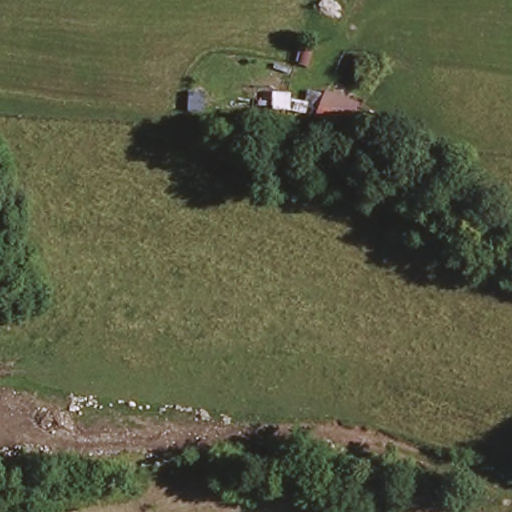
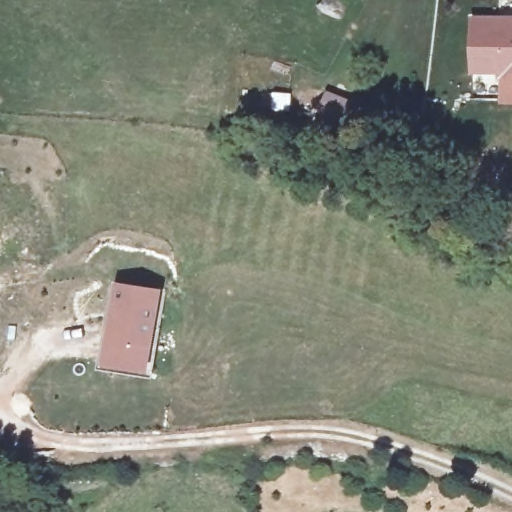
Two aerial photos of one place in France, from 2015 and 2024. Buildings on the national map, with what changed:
new [(512,17),(512,78),(495,78),(495,74),(470,75),(470,17),(512,17)]
unchanged [(365,97),(353,130),(317,116),(329,82),(365,97)]
new [(163,289),(150,373),(101,365),(114,282),(163,289)]

